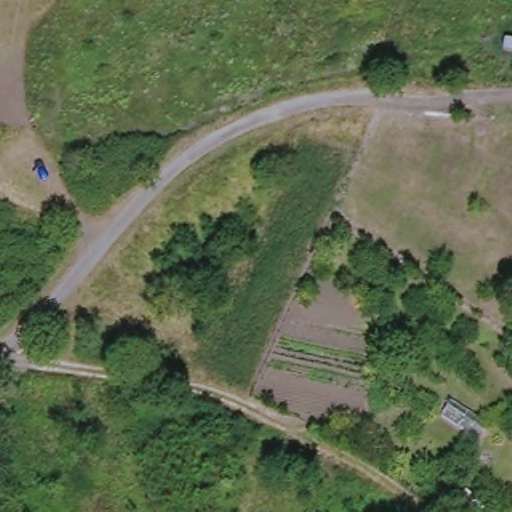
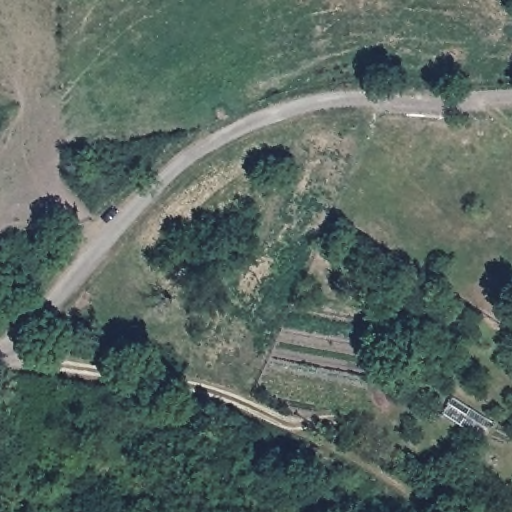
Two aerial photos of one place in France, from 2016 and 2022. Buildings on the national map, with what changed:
unchanged [(494,418),(481,441),(444,417),(456,395),(494,418)]
unchanged [(494,502),(486,512),(463,512),(453,504),(469,485),(494,502)]

